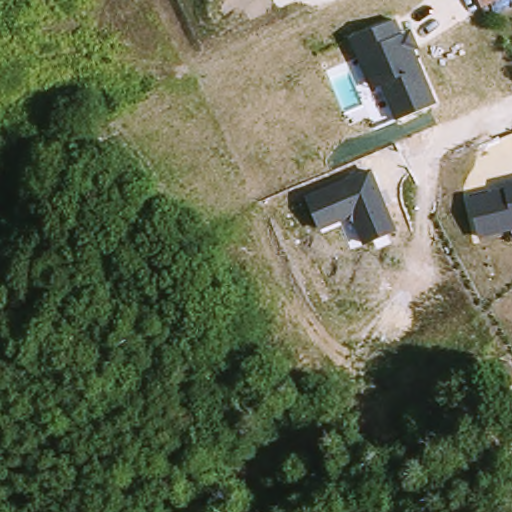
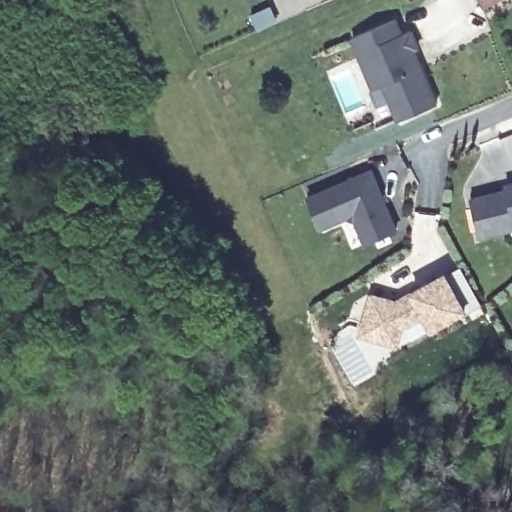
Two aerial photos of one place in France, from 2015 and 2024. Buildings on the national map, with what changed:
new [(484,0),(497,0),(485,5),(484,0)]
unchanged [(396,20),(403,33),(412,28),(420,49),(415,51),(437,104),(398,121),(383,85),(373,89),(362,62),(357,65),(347,40),(396,20)]
unchanged [(397,231),(366,246),(354,216),(319,231),(305,197),(371,170),(397,231)]
unchanged [(471,198),(505,190),(504,186),(512,184),(512,231),(479,240),(471,198)]
new [(373,290),(398,298),(447,271),(467,307),(433,325),(426,312),(403,324),(398,341),(362,331),(373,290)]

